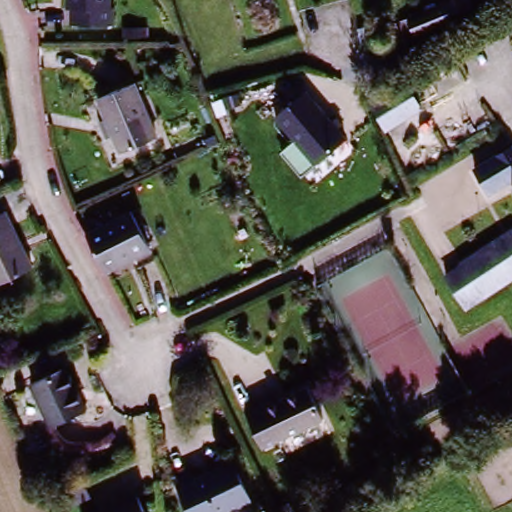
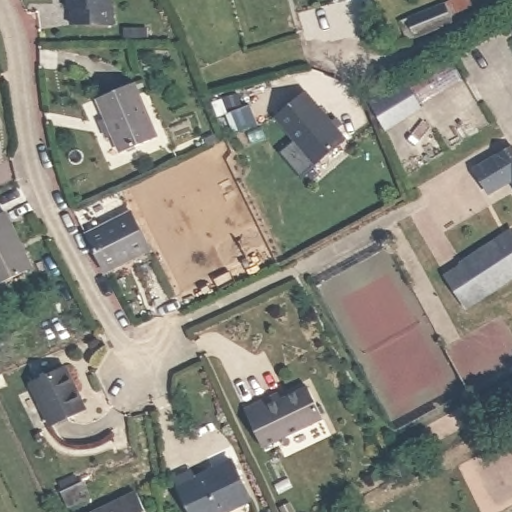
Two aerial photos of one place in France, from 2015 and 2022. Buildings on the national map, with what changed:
unchanged [(106,1),(110,2),(110,19),(68,17),(69,2),(65,2),(65,0),(107,0),(106,1)]
unchanged [(450,0),(465,0),(466,2),(447,13),(450,19),(441,24),(413,35),(407,19),(442,5),(450,0)]
unchanged [(135,82),(155,139),(120,153),(98,95),(135,82)]
unchanged [(275,117),(305,93),(347,140),(314,165),(275,117)]
unchanged [(511,175),(486,186),(475,164),(486,157),(500,151),(512,145),(512,177),(511,175)]
unchanged [(87,234),(133,212),(152,249),(105,271),(87,234)]
unchanged [(0,279),(0,214),(25,267),(0,279)]
unchanged [(511,231),(512,232),(512,280),(483,297),(460,260),(511,231)]
unchanged [(483,297),(463,310),(440,272),(460,260),(483,297)]
unchanged [(62,369),(80,411),(50,426),(31,383),(62,369)]
unchanged [(256,403),(260,408),(310,385),(325,417),(261,446),(243,410),(256,403)]
unchanged [(196,482),(238,465),(253,510),(248,512),(190,512),(178,480),(193,473),(196,482)]
unchanged [(81,483),(89,500),(67,510),(61,493),(81,483)]
unchanged [(142,512),(100,512),(131,493),(142,512)]

